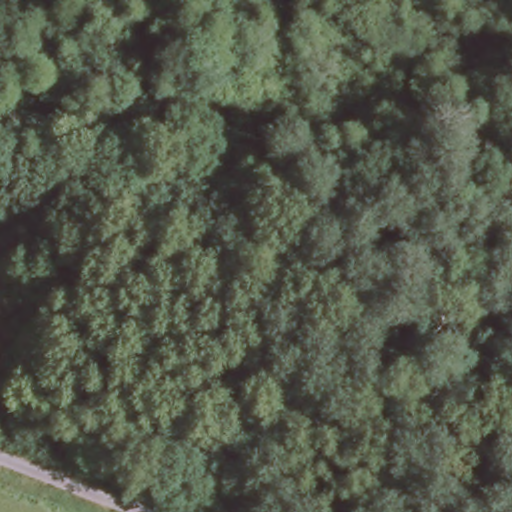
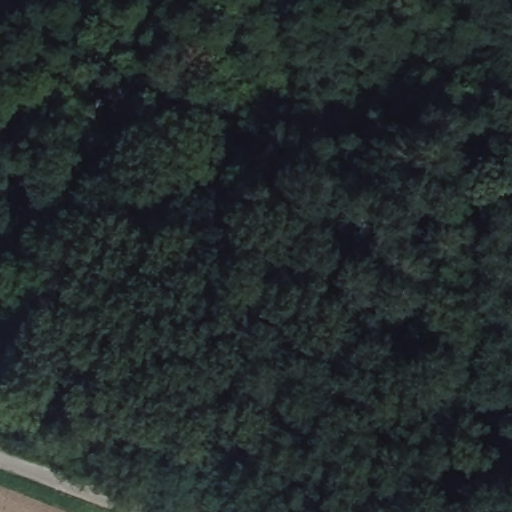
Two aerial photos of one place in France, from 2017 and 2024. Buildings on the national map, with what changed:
unchanged [(166,191),(154,189),(156,178),(169,180),(166,191)]
unchanged [(294,196),(282,195),(283,184),(295,185),(294,196)]

